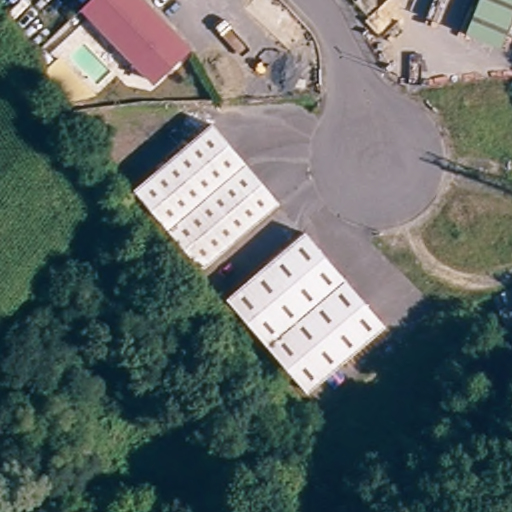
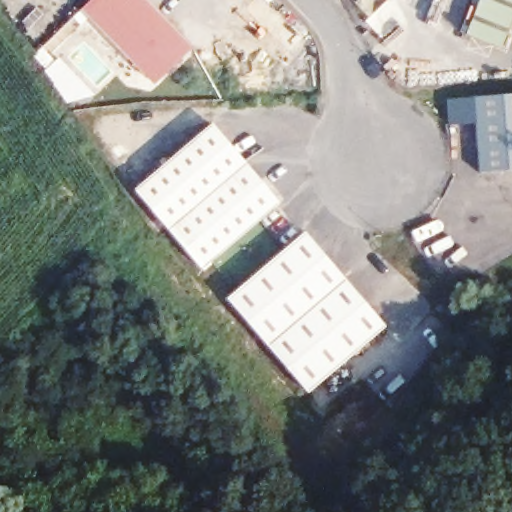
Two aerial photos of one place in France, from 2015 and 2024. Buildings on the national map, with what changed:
unchanged [(85,0),(155,0),(169,15),(133,51),(84,1),(85,0)]
unchanged [(489,54),(455,40),(472,0),(512,0),(489,54)]
unchanged [(192,39),(156,74),(133,51),(169,15),(192,39)]
new [(477,124),(458,125),(456,100),(512,95),(512,170),(481,172),(477,124)]
unchanged [(207,119),(275,197),(198,263),(131,185),(207,119)]
unchanged [(381,315),(305,381),(224,288),(301,222),(381,315)]

